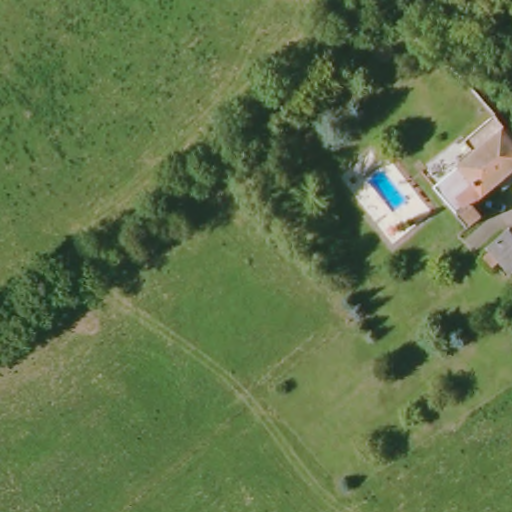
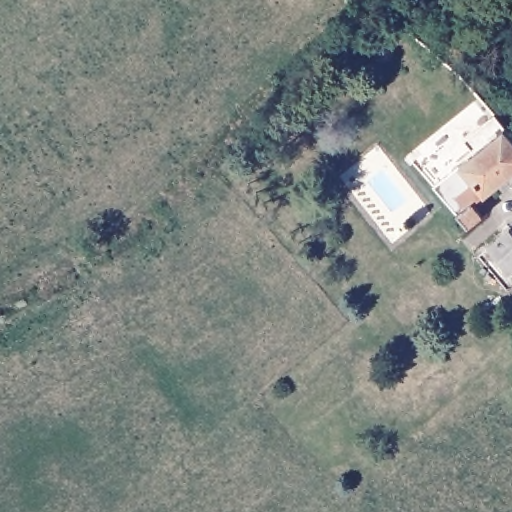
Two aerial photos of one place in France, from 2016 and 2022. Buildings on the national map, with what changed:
unchanged [(471,174),(486,161),(477,147),(501,129),(509,141),(512,139),(512,188),(496,201),(471,174)]
unchanged [(481,210),(495,226),(475,240),(462,224),(481,210)]
unchanged [(495,247),(512,234),(512,268),(495,247)]

